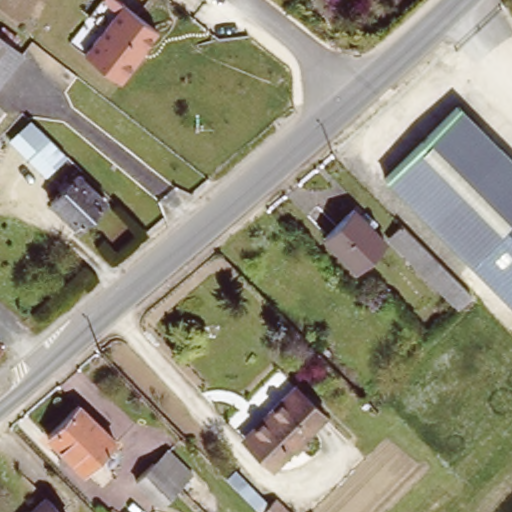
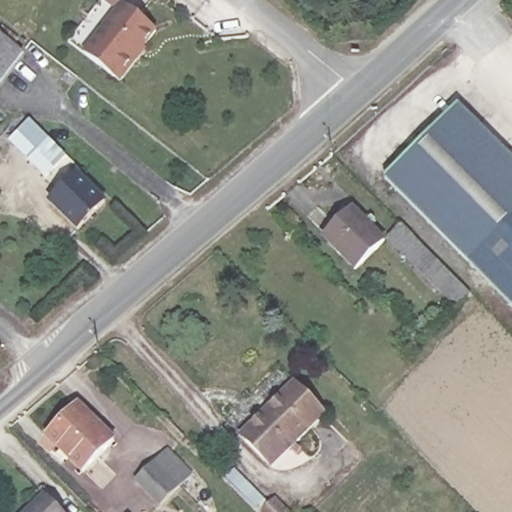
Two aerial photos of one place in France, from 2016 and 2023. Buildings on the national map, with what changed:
unchanged [(158,29),(122,79),(83,51),(121,0),(158,29)]
unchanged [(22,56),(3,79),(0,76),(0,38),(22,56)]
unchanged [(3,79),(0,84),(0,76),(3,79)]
unchanged [(512,307),(381,180),(454,108),(512,166),(512,307)]
unchanged [(68,154),(64,159),(78,170),(108,200),(78,231),(48,202),(59,189),(47,178),(7,140),(30,119),(68,154)]
unchanged [(350,273),(318,240),(346,213),(379,245),(350,273)]
unchanged [(452,312),(382,240),(394,228),(465,299),(452,312)]
unchanged [(266,411),(293,384),(324,415),(271,467),(245,441),(241,436),(266,411)]
unchanged [(114,439),(88,471),(50,440),(76,408),(114,439)]
unchanged [(168,447),(194,473),(161,507),(133,479),(168,447)]
unchanged [(38,495),(54,512),(20,512),(38,495)]

